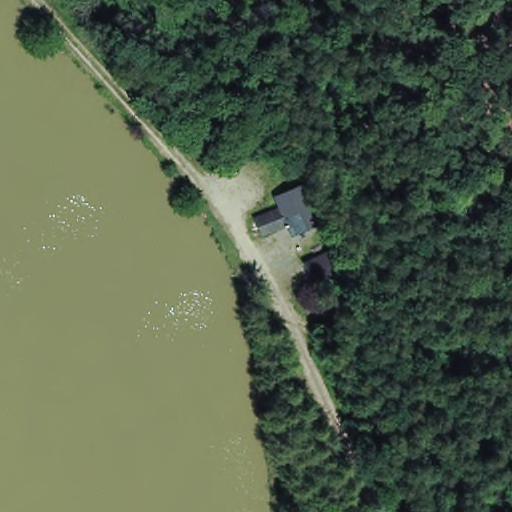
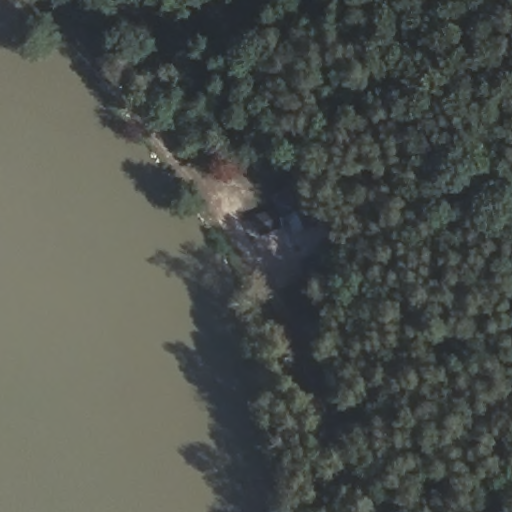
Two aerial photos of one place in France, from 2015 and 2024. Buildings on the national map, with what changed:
unchanged [(255,220),(278,211),(274,203),(289,197),(301,224),(286,230),(263,239),(255,220)]
unchanged [(339,274),(314,285),(304,264),(330,254),(339,274)]

